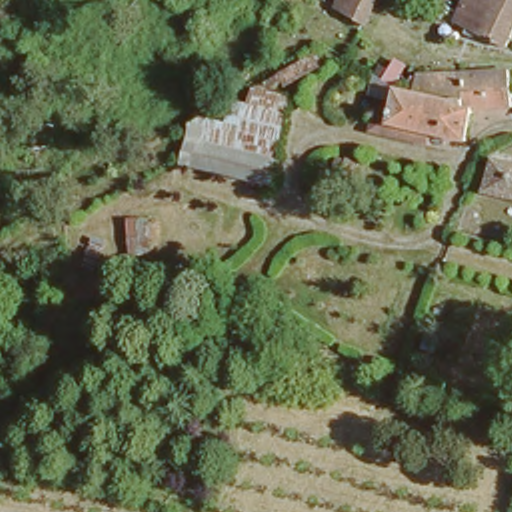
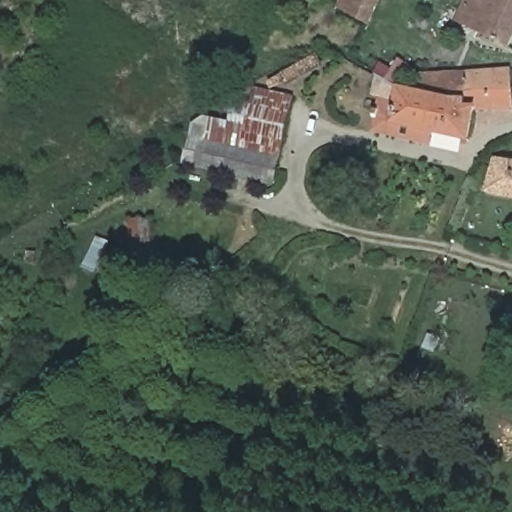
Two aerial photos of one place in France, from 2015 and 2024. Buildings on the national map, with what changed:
unchanged [(367,20),(342,9),(346,0),(375,0),(374,1),(367,20)]
unchanged [(507,53),(453,35),(461,15),(466,0),(512,0),(512,41),(507,53)]
unchanged [(194,120),(205,114),(230,118),(236,98),(253,100),(256,85),(264,86),(318,51),(325,66),(286,91),(294,94),(273,184),(184,162),(194,120)]
unchanged [(510,81),(512,89),(512,111),(478,116),(474,148),(403,140),(409,106),(433,109),(432,93),(467,88),(492,84),(510,81)]
unchanged [(487,189),(494,158),(512,163),(512,196),(487,189)]
unchanged [(152,215),(154,253),(132,255),(128,216),(152,215)]
unchanged [(108,238),(96,270),(82,263),(95,233),(108,238)]

